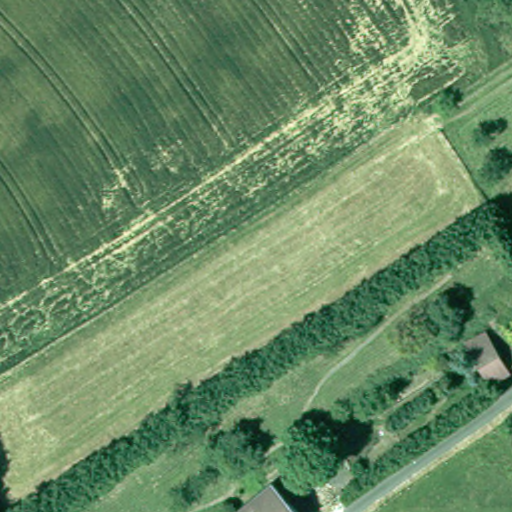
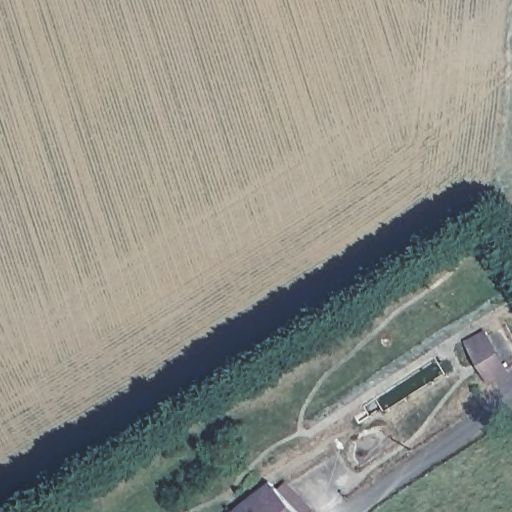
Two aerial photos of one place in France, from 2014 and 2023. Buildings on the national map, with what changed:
unchanged [(461,342),(480,332),(483,337),(500,327),(512,349),(512,363),(483,382),(461,342)]
unchanged [(236,511),(271,483),(279,492),(288,486),(314,512),(237,512),(236,511)]

